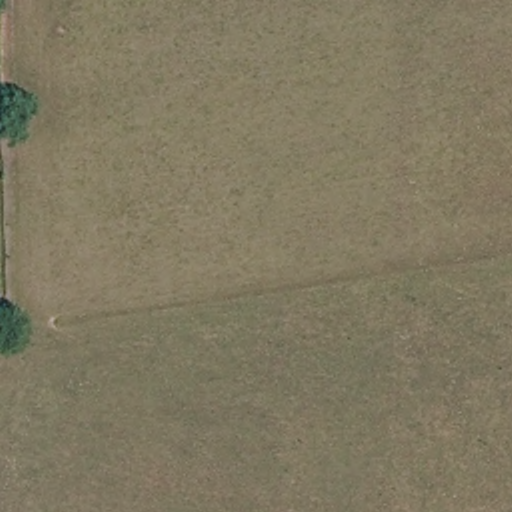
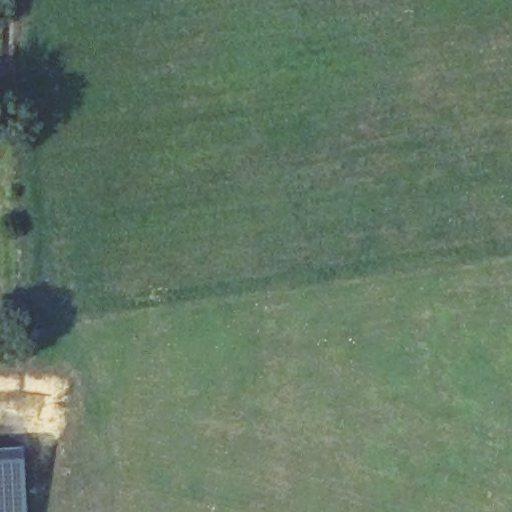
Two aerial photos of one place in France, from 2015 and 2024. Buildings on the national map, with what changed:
new [(28,512),(0,512),(0,446),(25,445),(28,512)]

